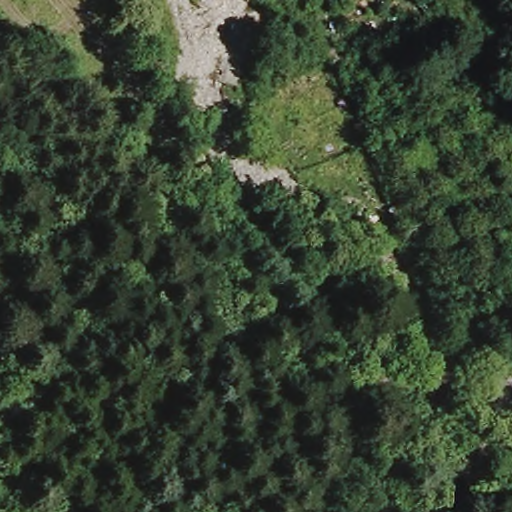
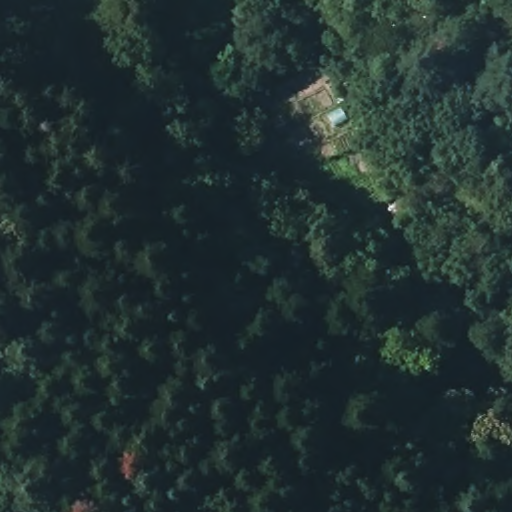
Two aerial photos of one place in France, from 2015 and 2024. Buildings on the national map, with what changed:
unchanged [(294,168),(280,186),(267,171),(280,156),(294,168)]

